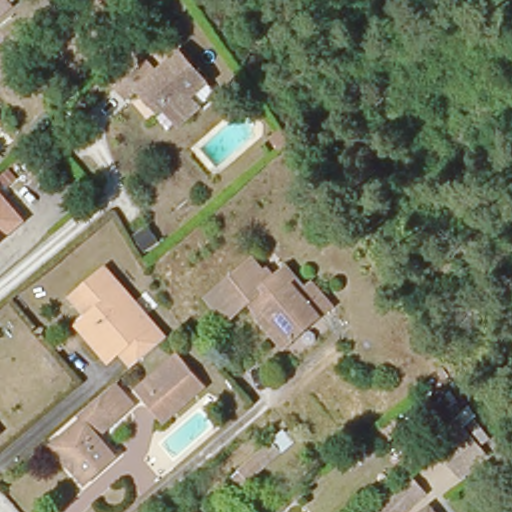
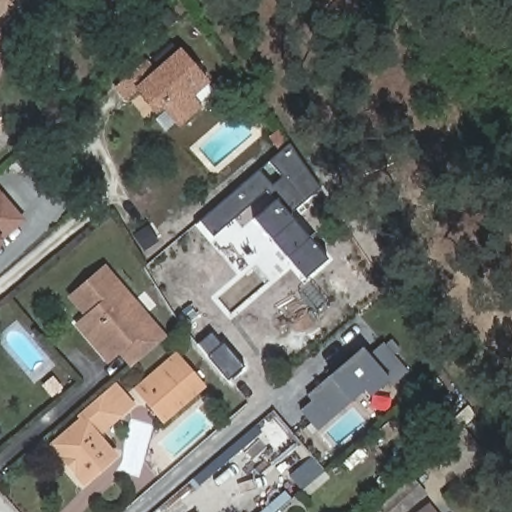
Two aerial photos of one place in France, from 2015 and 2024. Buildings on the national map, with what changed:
unchanged [(7,9),(0,14),(0,0),(1,0),(7,9)]
unchanged [(147,101),(137,88),(126,96),(116,83),(145,58),(155,72),(180,50),(206,81),(215,91),(197,106),(177,122),(162,104),(156,111),(147,101)]
unchanged [(268,141),(276,133),(286,144),(276,152),(268,141)]
new [(268,162),(289,144),(320,188),(295,209),(290,215),(326,259),(305,279),(254,219),(274,201),(266,192),(213,237),(200,222),(268,162)]
new [(1,192),(27,222),(0,239),(0,190),(1,192)]
unchanged [(93,355),(79,337),(65,322),(77,313),(61,296),(97,266),(125,299),(156,337),(121,366),(107,350),(97,359),(93,355)]
unchanged [(256,322),(259,320),(247,307),(225,325),(208,306),(207,304),(227,287),(232,283),(236,279),(252,266),(253,267),(262,278),(267,274),(273,282),(284,273),(296,288),(301,295),(310,287),(329,310),(290,345),(281,352),(256,322)]
new [(210,332),(221,344),(222,342),(242,366),(227,380),(206,357),(207,355),(197,344),(210,332)]
new [(307,394),(327,377),(362,347),(370,356),(384,342),(410,372),(392,386),(387,382),(370,397),(365,391),(351,402),(318,432),(300,411),(312,401),(307,394)]
unchanged [(174,356),(201,386),(163,420),(135,390),(174,356)]
unchanged [(74,473),(50,446),(80,420),(77,416),(114,385),(131,405),(95,436),(113,457),(99,470),(83,483),(74,473)]
unchanged [(462,432),(483,456),(460,476),(439,452),(462,432)]
demolished [(275,435),(282,442),(244,476),(237,468),(275,435)]
unchanged [(424,492),(402,512),(375,512),(412,480),(424,492)]
unchanged [(348,512),(340,512),(344,508),(348,512)]
unchanged [(431,512),(428,512),(430,511),(431,512)]

